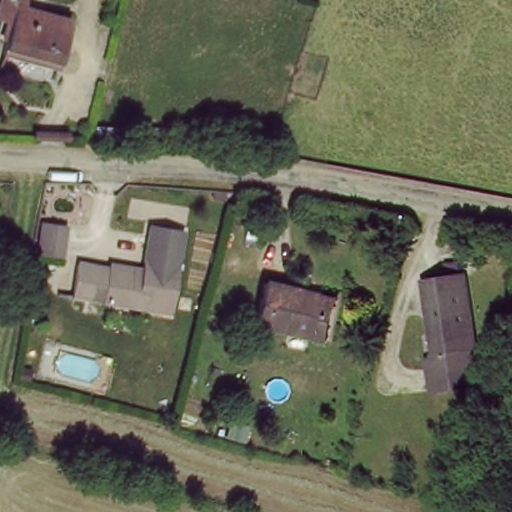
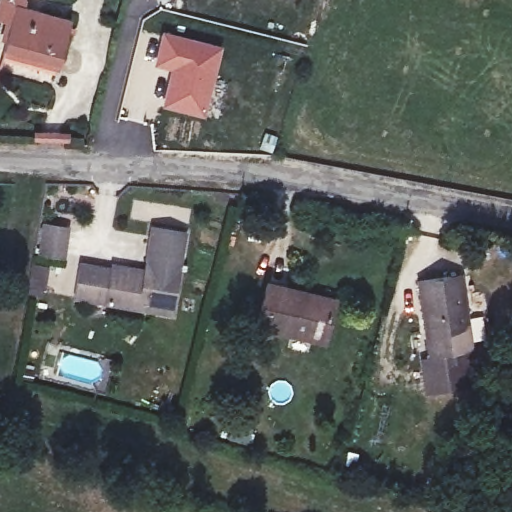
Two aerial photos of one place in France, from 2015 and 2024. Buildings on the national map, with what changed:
unchanged [(70,21),(57,68),(0,53),(10,22),(0,20),(0,0),(21,0),(20,7),(70,21)]
new [(163,105),(174,70),(155,64),(163,31),(223,46),(205,116),(163,105)]
unchanged [(68,226),(64,259),(39,256),(43,222),(68,226)]
new [(150,225),(185,232),(180,262),(145,258),(150,225)]
unchanged [(75,298),(81,260),(143,269),(145,258),(180,262),(172,312),(75,298)]
unchanged [(424,391),(420,363),(432,362),(422,278),(465,274),(473,349),(463,349),(467,387),(424,391)]
unchanged [(258,321),(270,281),(305,291),(341,301),(337,311),(328,341),(258,321)]

